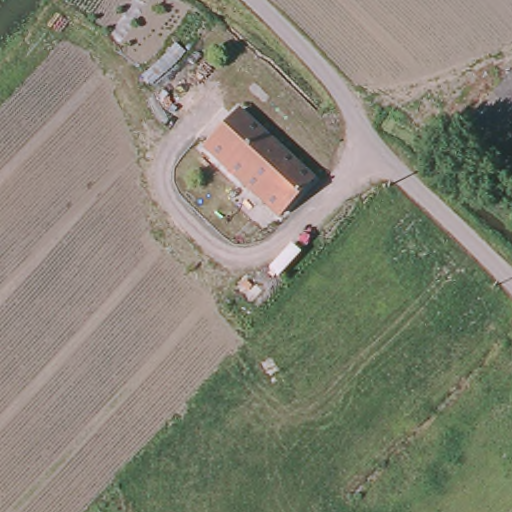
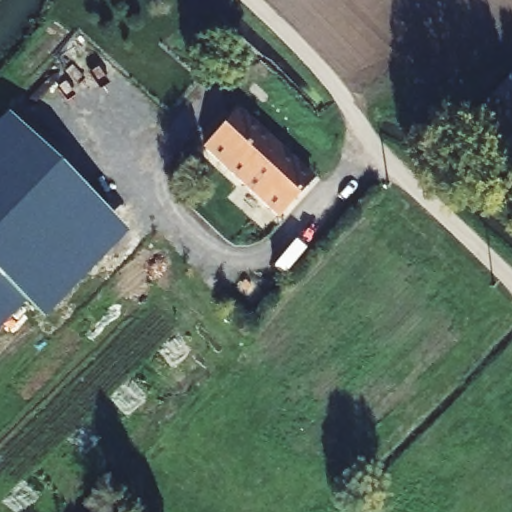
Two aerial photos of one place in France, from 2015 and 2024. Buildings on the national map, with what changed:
unchanged [(512,205),(443,143),(503,76),(512,85),(512,205)]
unchanged [(315,181),(281,217),(208,150),(241,114),(315,181)]
new [(108,214),(0,325),(0,124),(7,116),(108,214)]

